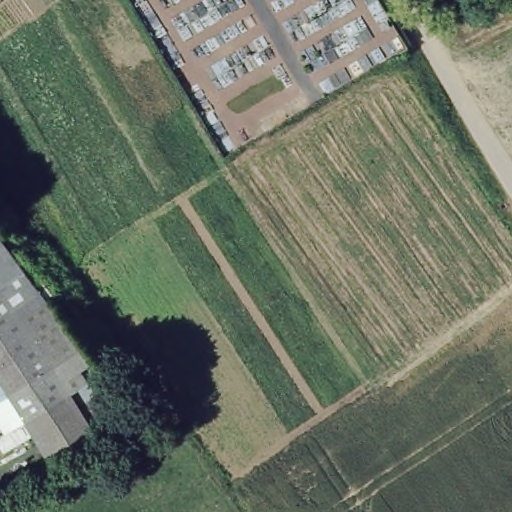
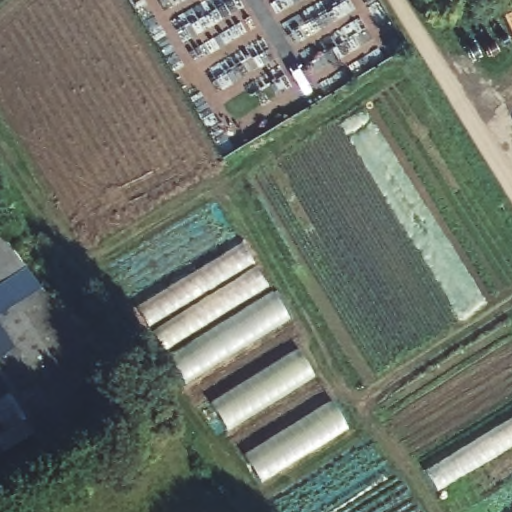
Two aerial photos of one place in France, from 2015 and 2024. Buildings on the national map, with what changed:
unchanged [(67,397),(90,431),(51,457),(24,420),(4,433),(0,427),(0,228),(102,372),(67,397)]
new [(290,320),(185,385),(136,308),(243,242),(290,320)]
new [(315,378),(227,432),(210,403),(298,351),(315,378)]
new [(350,428),(262,483),(243,456),(332,400),(350,428)]
new [(424,473),(512,419),(512,512),(449,512),(424,473)]

